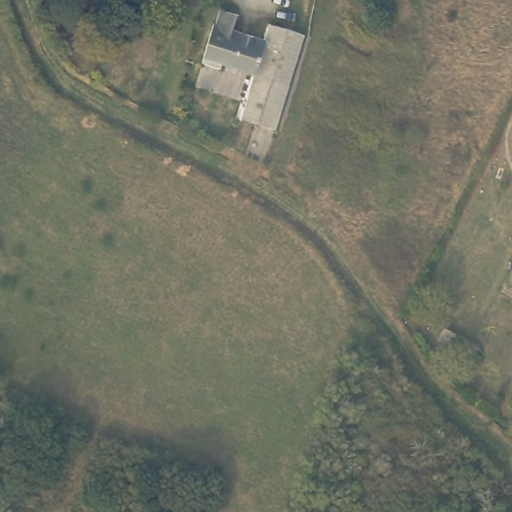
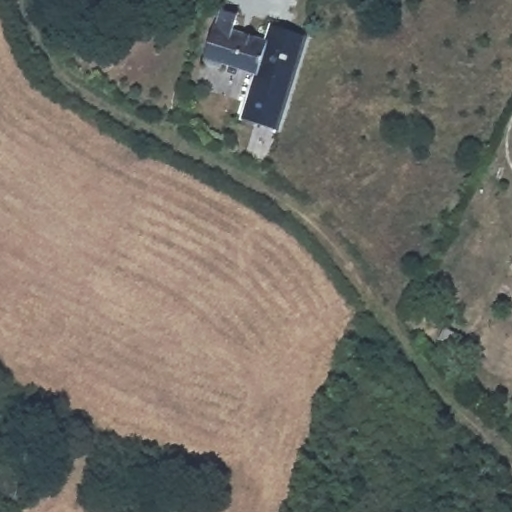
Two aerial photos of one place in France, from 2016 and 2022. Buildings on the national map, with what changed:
unchanged [(229,31),(255,39),(259,24),(303,37),(274,132),(235,120),(247,78),(252,80),(253,75),(218,66),(217,70),(199,65),(210,26),(213,26),(217,12),(233,17),(229,31)]

